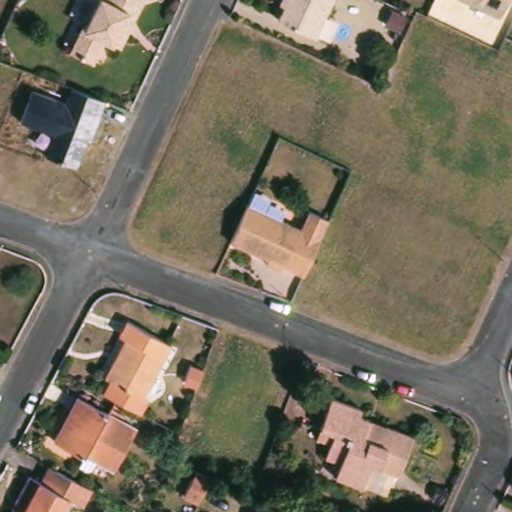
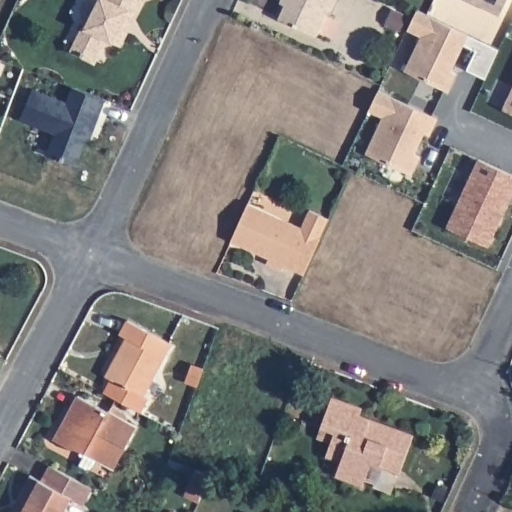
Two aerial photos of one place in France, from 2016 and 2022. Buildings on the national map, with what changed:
unchanged [(110,43),(102,40),(92,63),(68,53),(80,28),(82,29),(94,5),(96,0),(139,0),(132,15),(130,21),(118,46),(110,43)]
unchanged [(335,0),(316,43),(278,26),(285,11),(280,10),(284,0),(335,0)]
unchanged [(505,0),(497,17),(463,0),(505,0)]
new [(484,74),(467,66),(476,46),(463,41),(451,67),(457,70),(448,88),(405,68),(422,33),(407,26),(417,6),(468,31),(496,44),(484,74)]
unchanged [(385,25),(392,11),(405,17),(398,31),(385,25)]
unchanged [(47,155),(55,133),(20,119),(32,88),(67,101),(72,86),(106,98),(97,117),(101,119),(92,139),(85,136),(76,166),(47,155)]
new [(512,90),(512,115),(502,111),(512,90)]
new [(382,120),(367,114),(377,94),(436,121),(428,138),(423,136),(413,157),(418,160),(410,179),(365,158),(382,120)]
new [(512,197),(508,205),(490,248),(447,230),(478,161),(512,176),(512,197)]
unchanged [(284,269),(282,274),(266,267),(269,261),(232,244),(249,207),(302,231),(304,228),(321,236),(302,277),(284,269)]
unchanged [(115,383),(109,380),(130,340),(125,337),(132,323),(174,346),(146,399),(153,402),(146,416),(109,396),(115,383)]
unchanged [(186,383),(192,365),(204,369),(197,386),(186,383)]
unchanged [(399,476),(371,465),(362,488),(335,478),(341,463),(326,457),(334,435),(319,429),(332,398),(362,410),(360,416),(370,419),(367,426),(384,432),(387,426),(415,437),(399,476)]
unchanged [(140,432),(118,471),(100,462),(96,471),(91,472),(82,468),(87,460),(57,444),(82,401),(140,432)]
unchanged [(81,506),(70,500),(63,512),(16,512),(20,506),(16,504),(30,479),(41,485),(49,469),(90,490),(81,506)]
unchanged [(184,500),(197,472),(210,477),(197,506),(184,500)]

